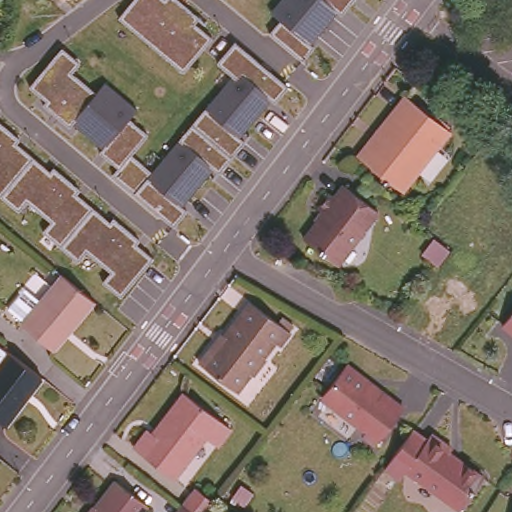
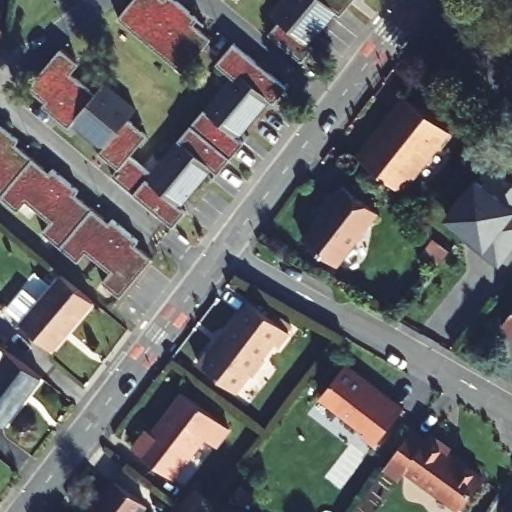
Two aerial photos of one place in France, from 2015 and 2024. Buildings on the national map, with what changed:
unchanged [(117,16),(130,0),(157,0),(162,4),(165,0),(176,0),(199,19),(194,27),(207,38),(180,68),(117,16)]
unchanged [(300,59),(266,33),(276,19),(265,10),(273,0),(346,0),(300,59)]
unchanged [(215,64),(232,42),(283,86),(173,224),(112,174),(120,166),(25,89),(60,47),(76,61),(65,77),(89,96),(104,78),(136,104),(122,122),(144,137),(127,158),(150,177),(230,76),(215,64)]
unchanged [(402,191),(358,155),(406,96),(450,131),(402,191)]
unchanged [(103,283),(110,271),(82,250),(75,260),(40,231),(49,219),(22,198),(13,208),(0,196),(0,128),(150,255),(120,296),(103,283)]
new [(477,178),(512,206),(512,251),(499,268),(445,218),(477,178)]
unchanged [(372,243),(366,251),(358,250),(339,275),(307,251),(325,225),(319,220),(332,203),(335,206),(345,194),(380,220),(369,235),(372,243)]
unchanged [(94,302),(53,351),(23,324),(62,275),(94,302)]
unchanged [(292,331),(282,344),(277,341),(266,355),(269,357),(255,375),(252,373),(240,391),(202,361),(215,342),(222,332),(226,334),(252,300),(292,331)]
unchanged [(504,324),(512,313),(512,331),(504,324)]
unchanged [(5,426),(0,422),(0,364),(9,352),(42,378),(5,426)]
unchanged [(391,400),(392,399),(405,408),(377,444),(365,434),(367,431),(322,397),(347,366),(391,400)]
unchanged [(205,441),(174,481),(135,451),(149,433),(154,437),(185,397),(230,431),(216,449),(205,441)]
unchanged [(429,439),(433,433),(454,448),(451,452),(485,477),(462,509),(407,470),(402,479),(387,468),(415,429),(429,439)]
unchanged [(114,483),(145,506),(141,512),(91,512),(99,503),(114,483)]
unchanged [(197,487),(217,503),(216,505),(210,512),(177,512),(184,504),(197,487)]

